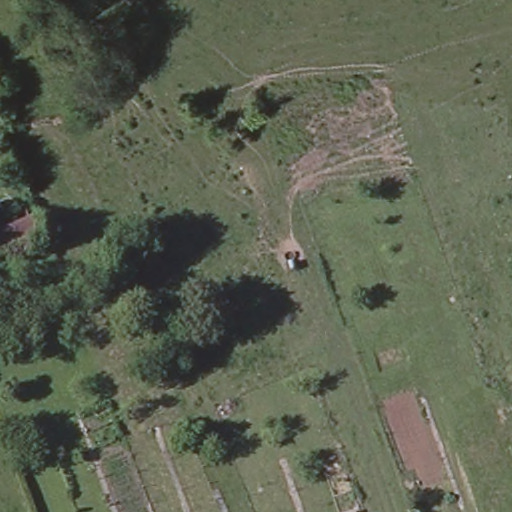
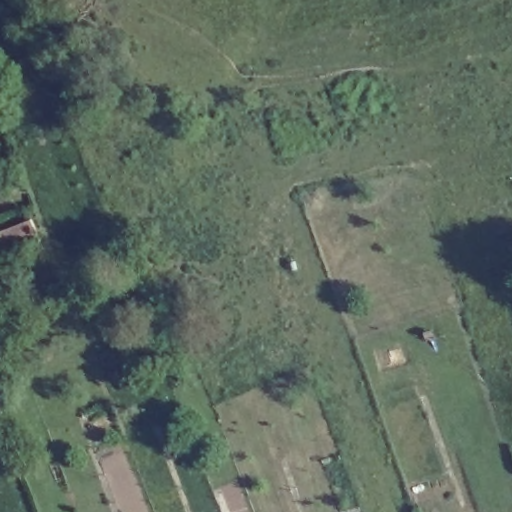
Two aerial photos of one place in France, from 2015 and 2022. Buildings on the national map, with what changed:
unchanged [(31,220),(37,236),(0,251),(0,232),(31,220)]

